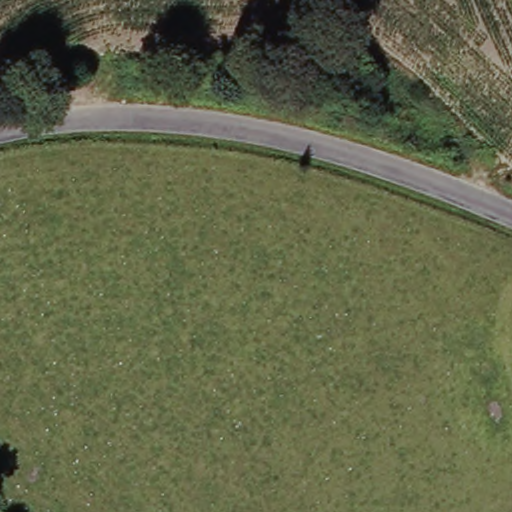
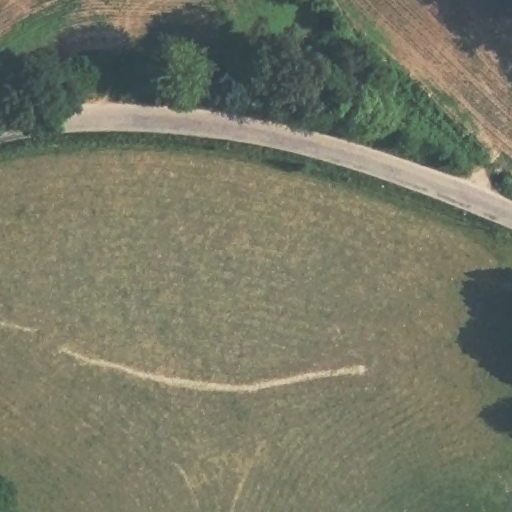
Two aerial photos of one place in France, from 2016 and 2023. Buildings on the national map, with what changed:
[]

